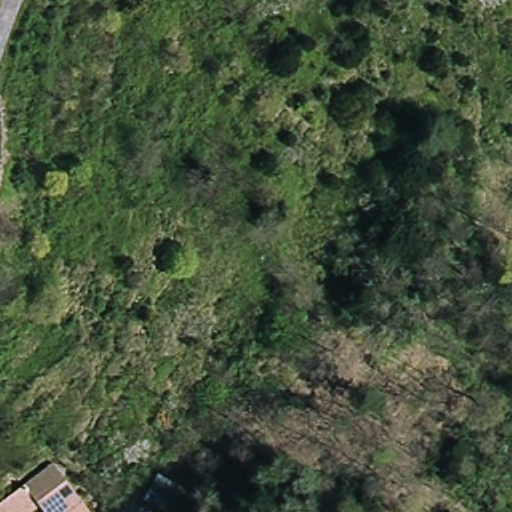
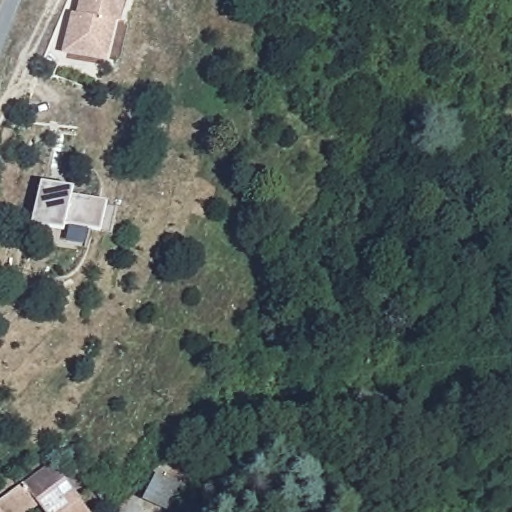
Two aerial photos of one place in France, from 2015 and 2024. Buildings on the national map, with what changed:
new [(93,57),(61,50),(70,12),(74,12),(77,0),(119,0),(114,22),(109,22),(100,59),(93,57)]
new [(40,182),(100,199),(92,229),(32,212),(40,182)]
unchanged [(40,512),(0,512),(0,509),(56,467),(91,512),(44,512),(43,511),(40,512)]

